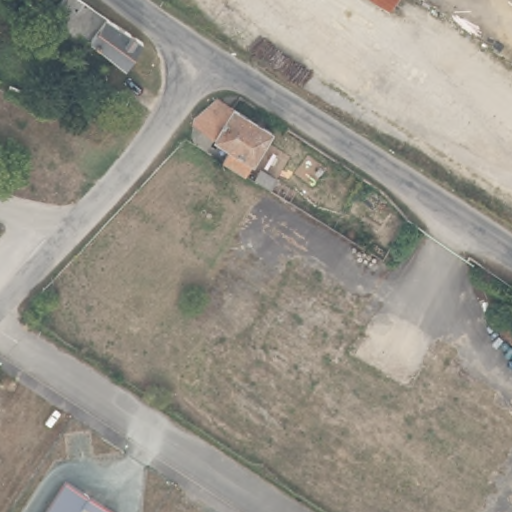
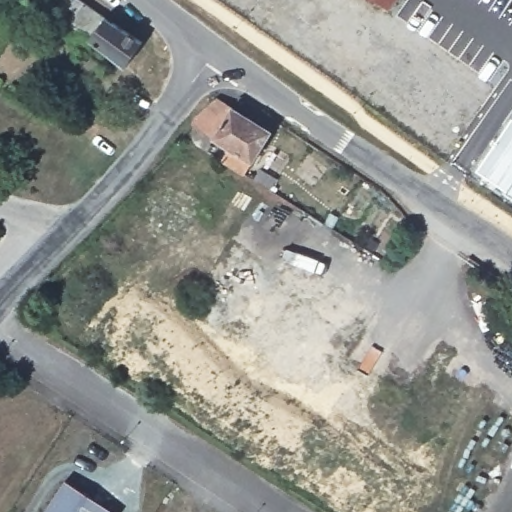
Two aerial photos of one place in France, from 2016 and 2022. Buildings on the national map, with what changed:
unchanged [(34,0),(51,0),(34,30),(21,22),(34,0)]
unchanged [(81,52),(71,47),(70,50),(53,42),(41,29),(63,0),(77,0),(134,37),(123,55),(115,67),(86,47),(81,52)]
unchanged [(201,153),(191,146),(191,121),(216,100),(231,109),(271,135),(243,177),(201,153)]
new [(512,119),(512,191),(510,190),(478,170),(512,119)]
unchanged [(267,192),(252,184),(260,172),(275,182),(267,192)]
unchanged [(116,512),(44,512),(66,477),(109,504),(117,509),(116,512)]

